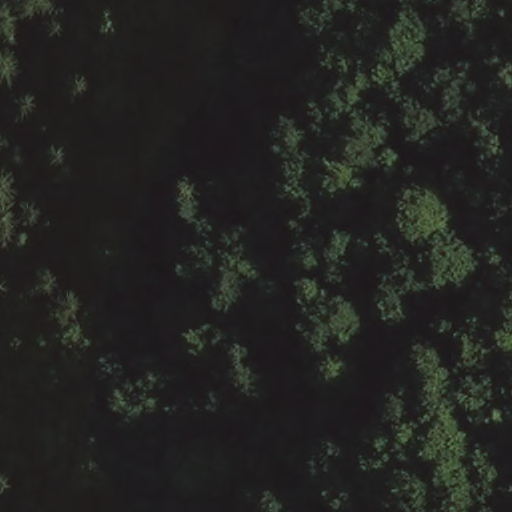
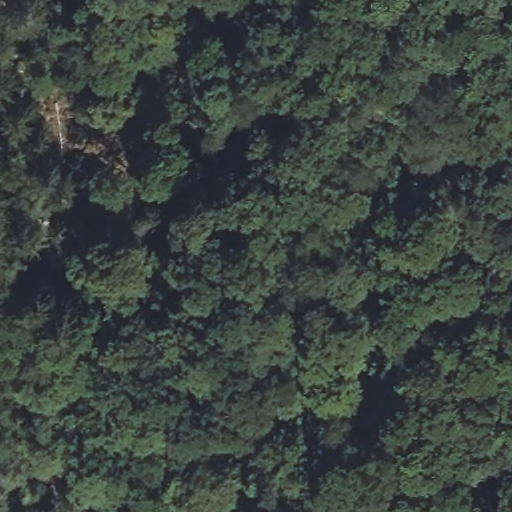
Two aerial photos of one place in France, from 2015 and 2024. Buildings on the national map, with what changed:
[]

